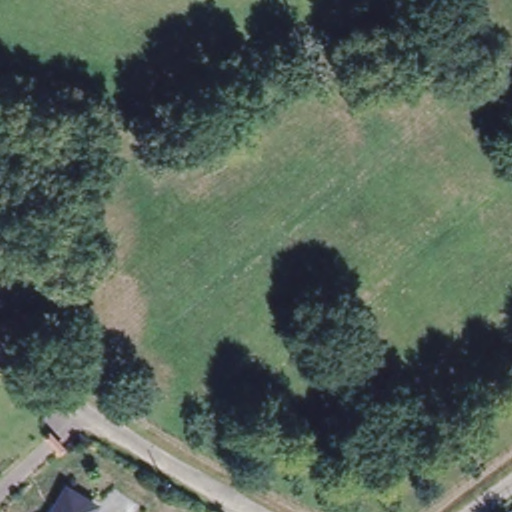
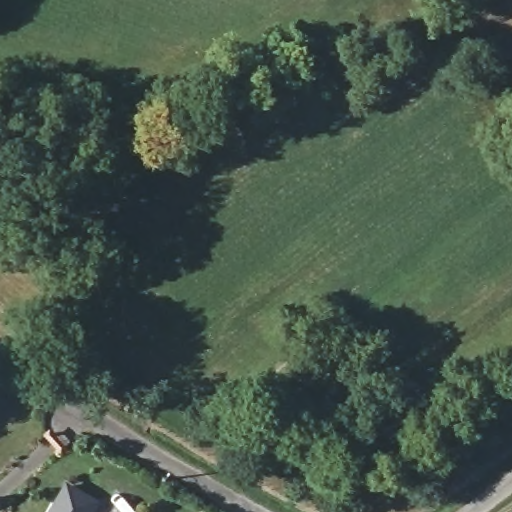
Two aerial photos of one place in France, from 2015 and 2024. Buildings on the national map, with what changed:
unchanged [(61,491),(90,508),(88,512),(49,512),(61,491)]

